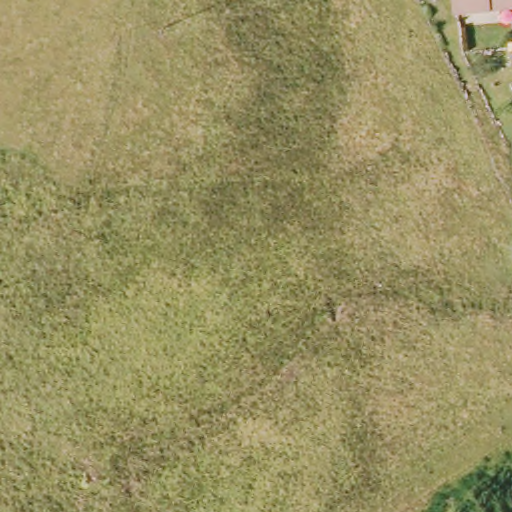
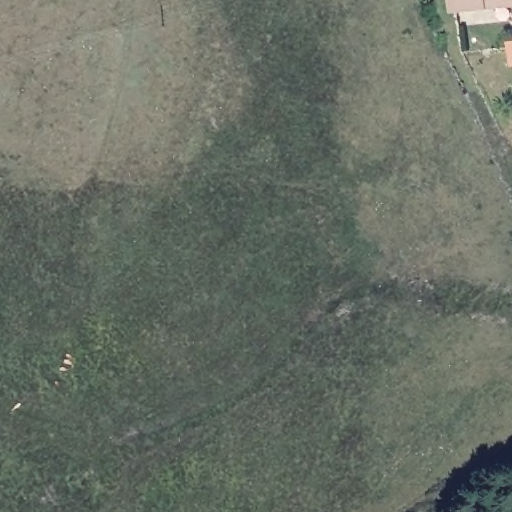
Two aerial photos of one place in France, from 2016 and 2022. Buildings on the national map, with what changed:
unchanged [(458,0),(512,0),(512,1),(459,6),(458,0)]

